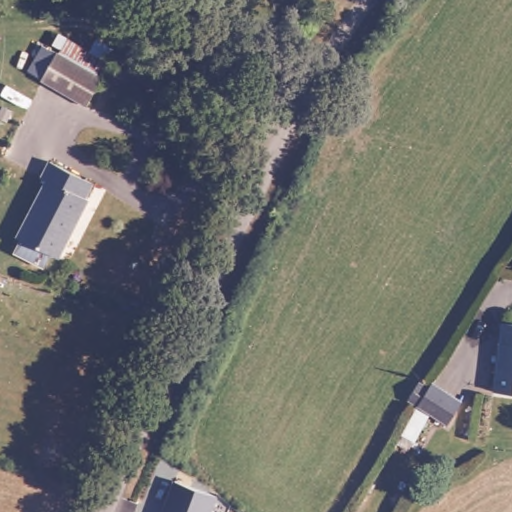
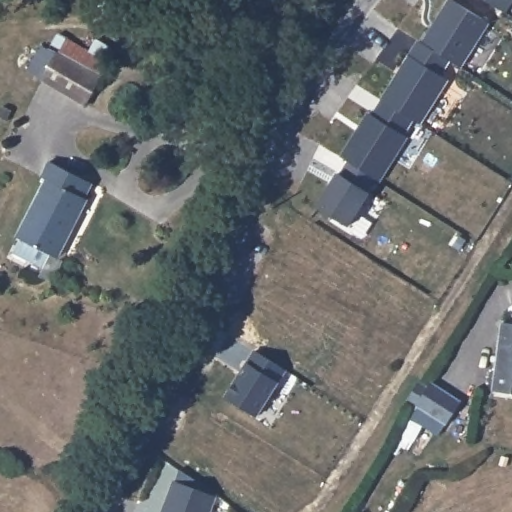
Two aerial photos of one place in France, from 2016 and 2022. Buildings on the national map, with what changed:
new [(448,58),(438,73),(447,79),(420,123),(411,118),(402,133),(406,136),(378,180),(372,177),(364,190),(370,193),(349,226),(315,205),(338,173),(346,159),(339,156),(368,110),(371,113),(417,38),(422,40),(447,0),(454,0),(488,23),(461,66),(448,58)]
new [(486,0),(512,0),(505,11),(486,0)]
unchanged [(37,81),(57,31),(114,59),(87,106),(37,81)]
unchanged [(50,177),(42,172),(51,154),(93,177),(84,195),(87,198),(57,255),(19,236),(50,177)]
unchanged [(487,389),(495,312),(512,315),(512,392),(487,389)]
new [(276,381),(278,382),(256,414),(224,396),(245,361),(254,349),(286,369),(276,381)]
unchanged [(434,387),(438,383),(463,404),(446,424),(413,392),(425,378),(434,387)]
demolished [(408,432),(398,422),(415,405),(425,414),(408,432)]
unchanged [(172,479),(215,496),(210,512),(161,512),(172,479)]

